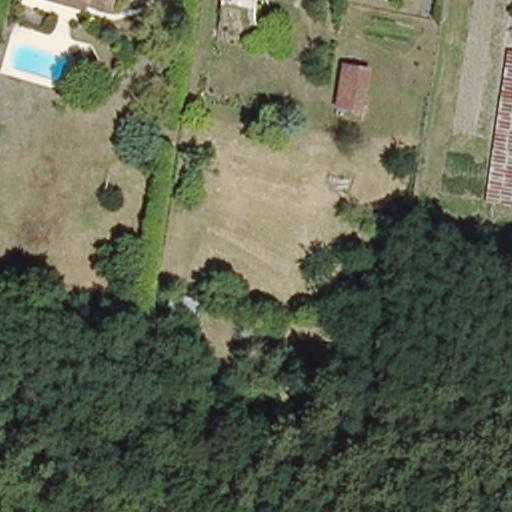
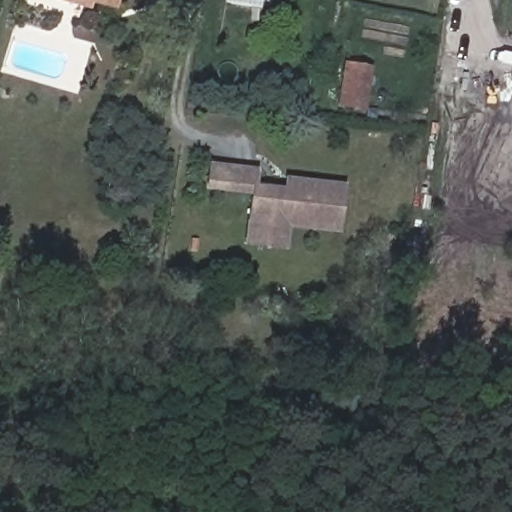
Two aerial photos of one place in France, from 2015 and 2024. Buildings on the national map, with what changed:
unchanged [(89,0),(88,4),(73,0),(89,0)]
unchanged [(511,48),(512,48),(512,199),(489,195),(491,181),(502,104),(511,48)]
unchanged [(355,107),(337,105),(343,60),(361,62),(355,107)]
new [(345,184),(340,233),(290,228),(287,251),(245,247),(250,197),(205,192),(208,164),(257,168),(256,185),(285,187),(285,177),(345,184)]
demolished [(350,195),(316,192),(315,170),(350,174),(350,195)]

